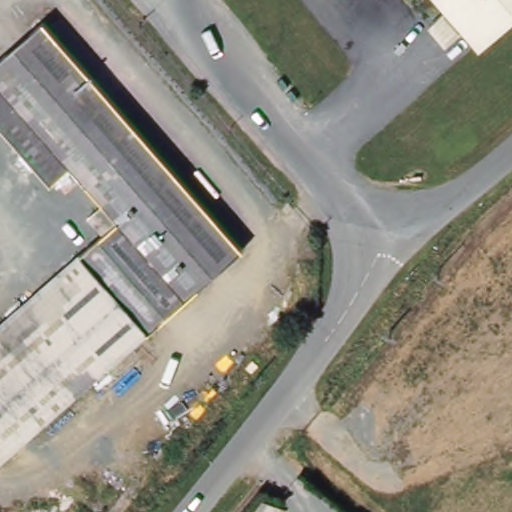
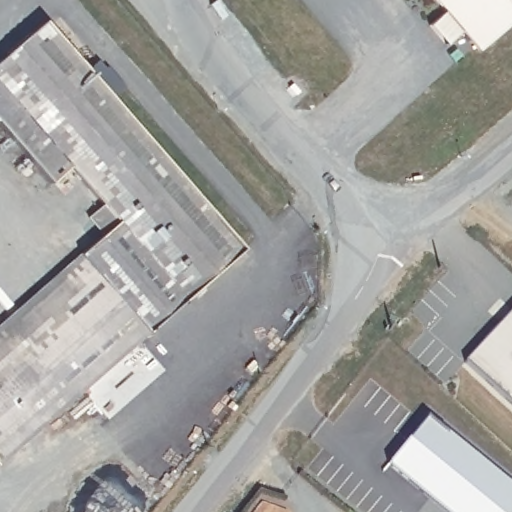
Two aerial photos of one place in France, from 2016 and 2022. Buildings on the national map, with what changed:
unchanged [(438,0),(512,0),(512,55),(497,68),(478,46),(462,60),(446,42),(462,29),(438,0)]
unchanged [(244,249),(131,345),(141,357),(120,376),(110,364),(0,460),(0,325),(106,232),(92,216),(105,204),(73,166),(53,184),(0,123),(0,57),(44,18),(244,249)]
new [(512,315),(512,407),(466,364),(512,315)]
new [(512,489),(512,512),(444,512),(387,465),(426,418),(512,489)]

